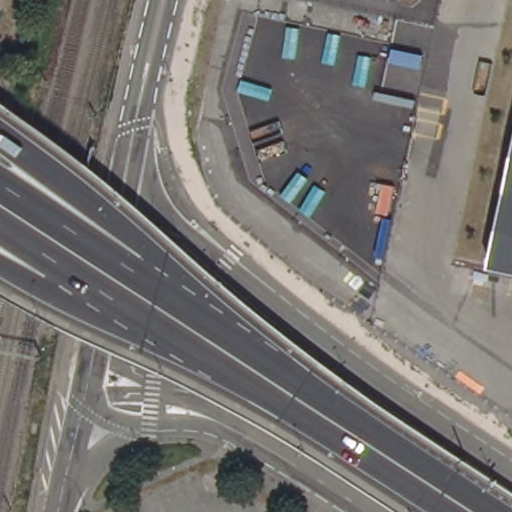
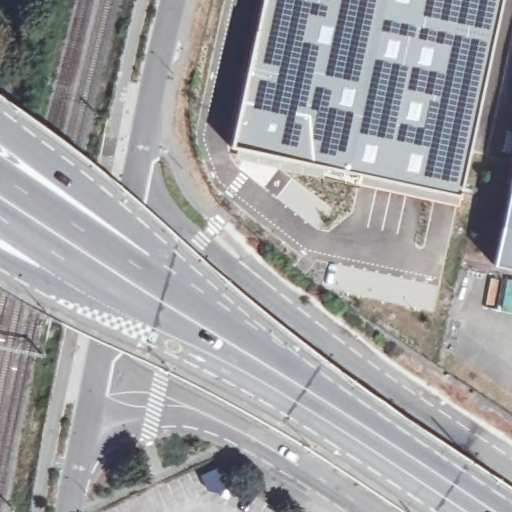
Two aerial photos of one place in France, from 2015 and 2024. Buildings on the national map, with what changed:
new [(500,0),(487,60),(460,198),(400,188),(400,191),(359,181),(360,177),(322,166),(229,147),(262,0),(500,0)]
unchanged [(493,265),(512,180),(512,269),(493,265)]

